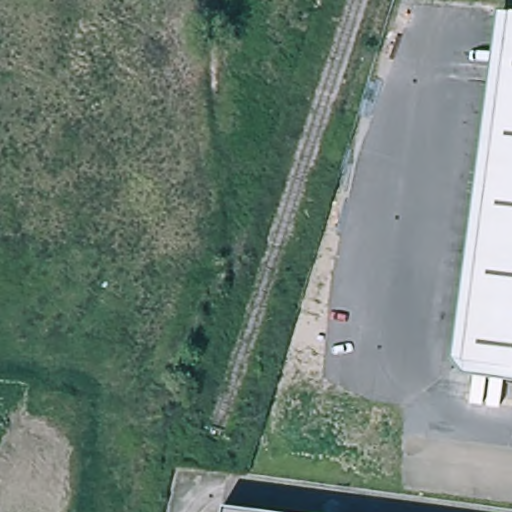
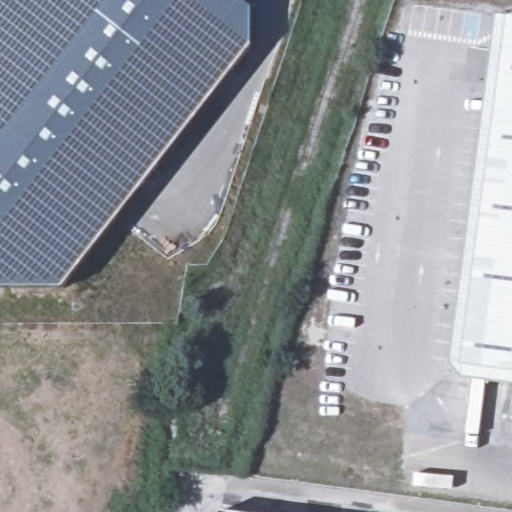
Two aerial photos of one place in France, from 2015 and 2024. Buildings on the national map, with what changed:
new [(0,290),(0,0),(242,0),(253,8),(253,47),(62,290),(0,290)]
unchanged [(463,356),(503,13),(512,14),(512,362),(463,356)]
unchanged [(350,512),(225,512),(229,491),(350,512)]

